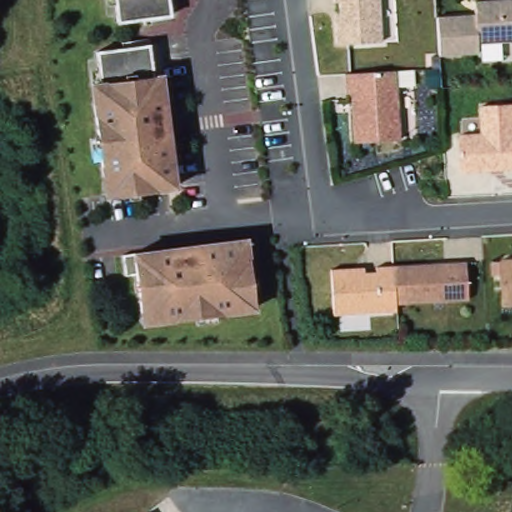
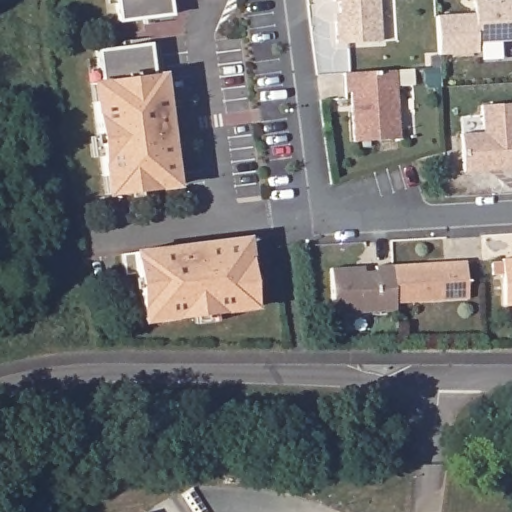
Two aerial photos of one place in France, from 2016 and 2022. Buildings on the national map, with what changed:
unchanged [(167,21),(115,22),(113,0),(172,0),(167,21)]
unchanged [(380,45),(334,45),(331,0),(377,0),(380,45)]
unchanged [(470,18),(470,1),(512,1),(512,42),(476,46),(476,54),(436,56),(435,19),(470,18)]
unchanged [(147,45),(162,77),(173,194),(102,199),(87,85),(93,50),(147,45)]
unchanged [(411,68),(412,85),(395,86),(396,144),(348,146),(341,74),(411,68)]
unchanged [(512,105),(512,169),(460,172),(461,135),(479,134),(478,105),(512,105)]
unchanged [(245,245),(254,314),(135,326),(127,253),(245,245)]
unchanged [(512,257),(512,306),(503,306),(500,257),(512,257)]
unchanged [(465,259),(465,305),(392,302),(392,312),(332,315),(330,270),(465,259)]

